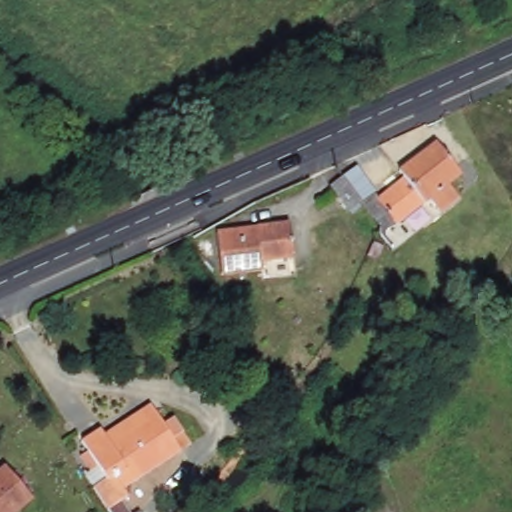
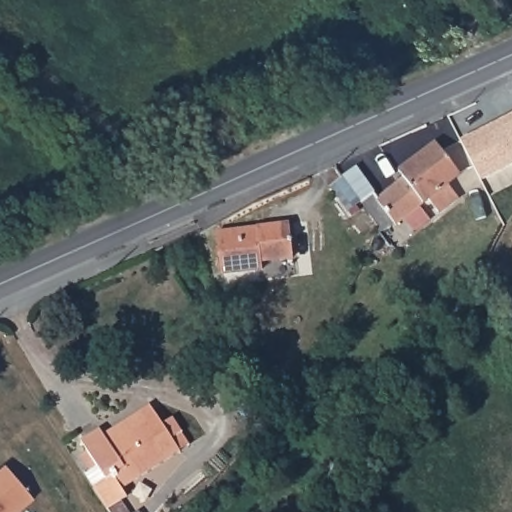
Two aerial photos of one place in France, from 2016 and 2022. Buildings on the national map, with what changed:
new [(512,115),(512,165),(480,181),(460,141),(512,115)]
unchanged [(339,197),(330,185),(343,176),(355,167),(378,197),(403,178),(402,176),(398,170),(416,157),(435,143),(460,173),(447,183),(459,197),(439,213),(427,199),(397,222),(384,228),(390,238),(384,242),(378,231),(381,225),(374,217),(362,200),(349,210),(339,197)]
unchanged [(288,228),(292,263),(261,267),(262,273),(220,279),(215,237),(288,228)]
unchanged [(101,478),(93,465),(86,470),(76,454),(83,449),(77,440),(94,429),(98,434),(144,405),(148,411),(175,451),(117,489),(121,496),(115,500),(123,512),(105,512),(88,487),(101,478)]
unchanged [(9,512),(0,512),(0,467),(26,498),(9,512)]

